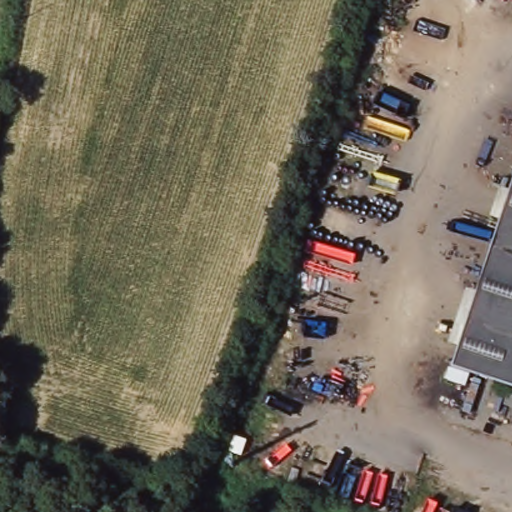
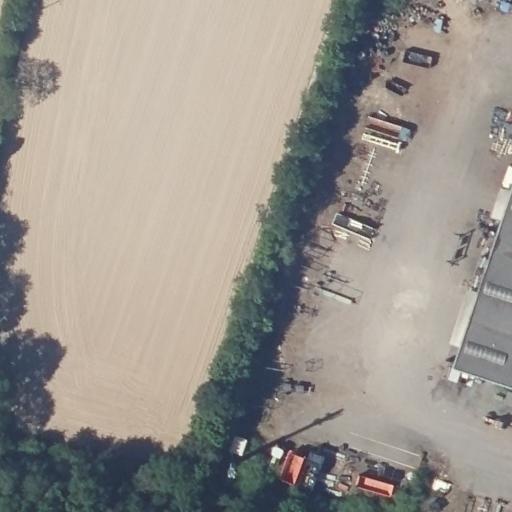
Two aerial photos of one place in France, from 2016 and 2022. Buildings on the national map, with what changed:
unchanged [(512,197),(512,386),(456,368),(512,197)]
unchanged [(512,397),(512,411),(505,408),(510,396),(512,397)]

